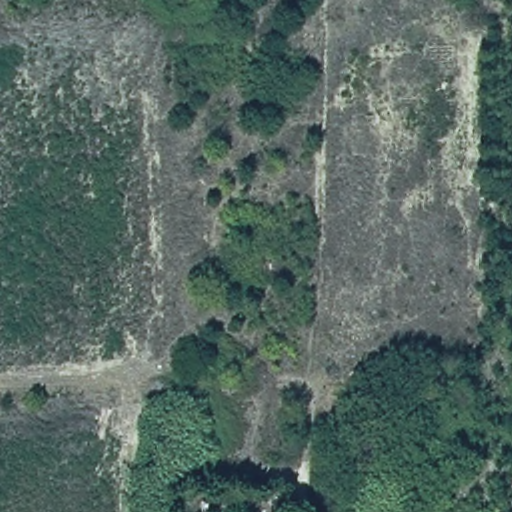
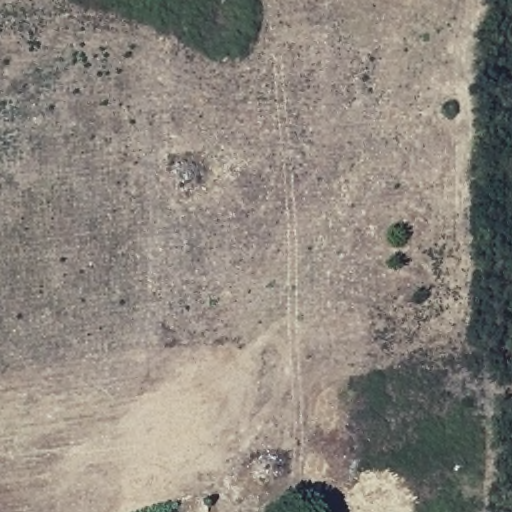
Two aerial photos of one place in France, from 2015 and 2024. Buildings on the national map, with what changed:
unchanged [(240,498),(240,512),(204,512),(205,496),(240,498)]

